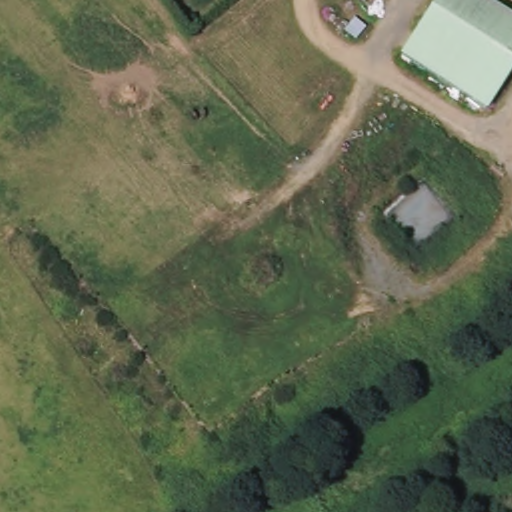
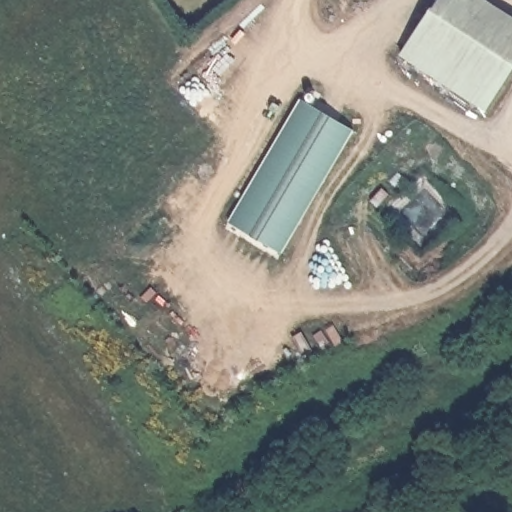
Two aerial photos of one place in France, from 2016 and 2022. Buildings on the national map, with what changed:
unchanged [(440,0),(498,0),(512,9),(512,78),(490,109),(404,53),(440,0)]
new [(229,222),(300,98),(304,99),(308,91),(318,97),(313,105),(353,130),(281,252),(229,222)]

